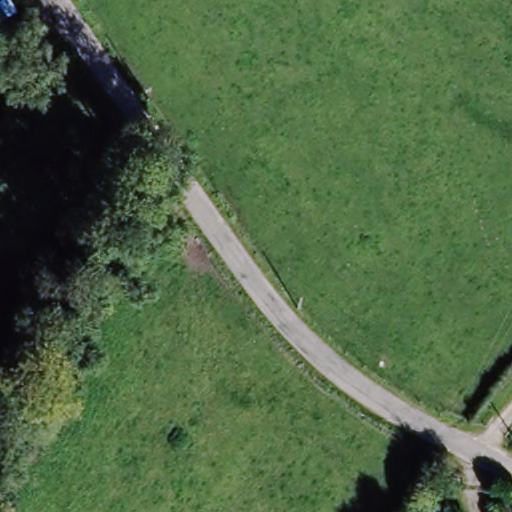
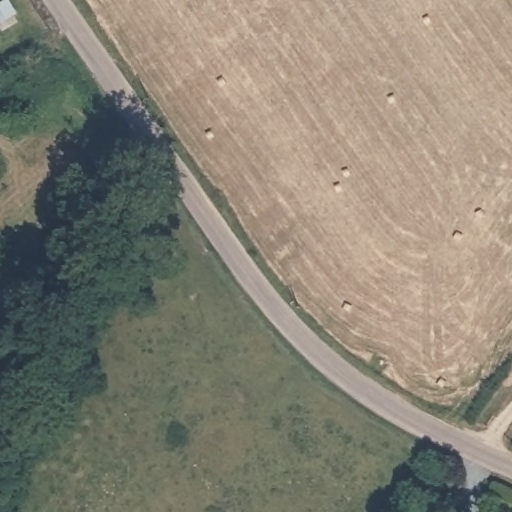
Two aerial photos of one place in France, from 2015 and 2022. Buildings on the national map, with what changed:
unchanged [(512,500),(512,512),(503,512),(510,498),(512,500)]

